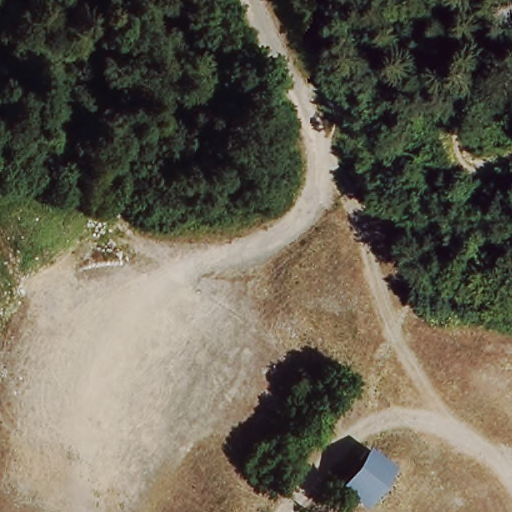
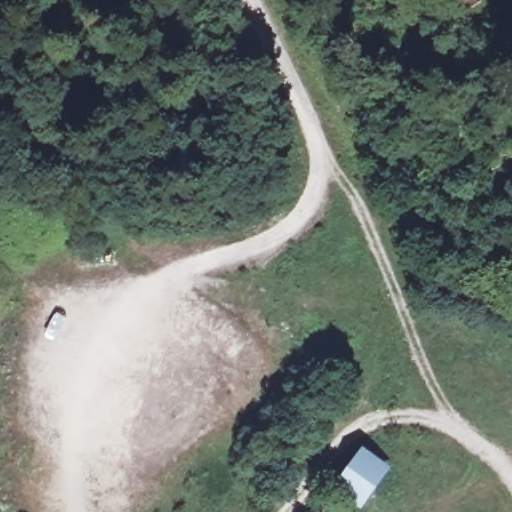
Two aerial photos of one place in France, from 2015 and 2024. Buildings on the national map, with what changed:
unchanged [(362,445),(395,462),(363,510),(332,488),(362,445)]

